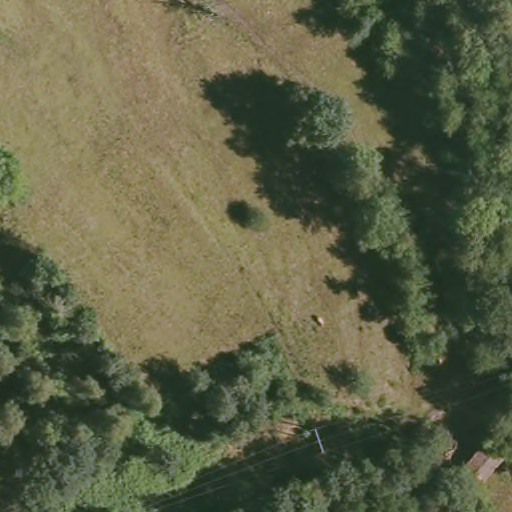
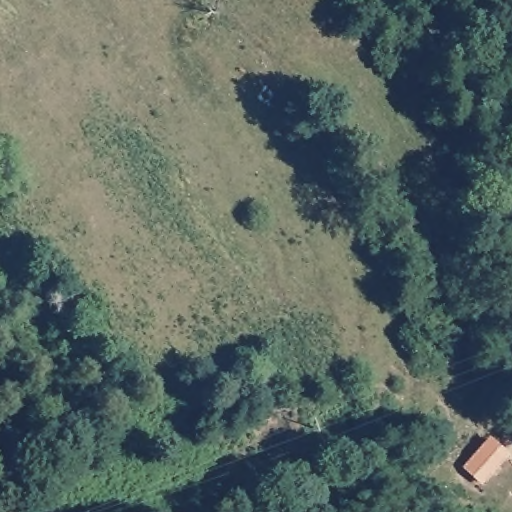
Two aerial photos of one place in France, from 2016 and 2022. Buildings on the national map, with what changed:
unchanged [(505,459),(482,487),(465,473),(489,445),(505,459)]

